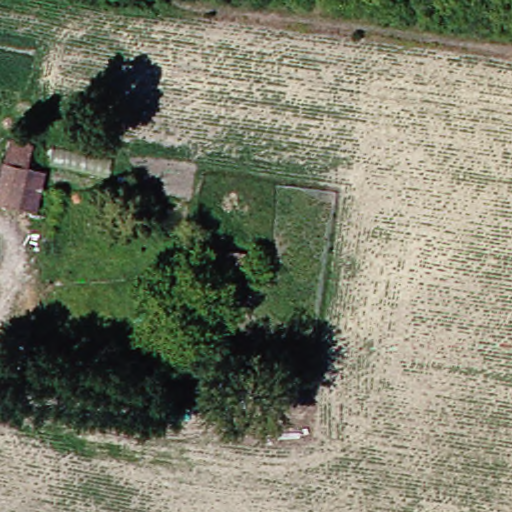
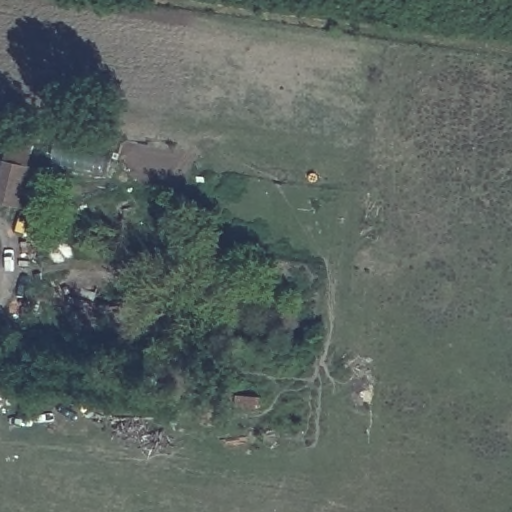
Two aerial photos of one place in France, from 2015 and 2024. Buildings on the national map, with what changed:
unchanged [(38,167),(31,205),(0,200),(0,159),(1,159),(5,137),(30,142),(26,164),(38,167)]

